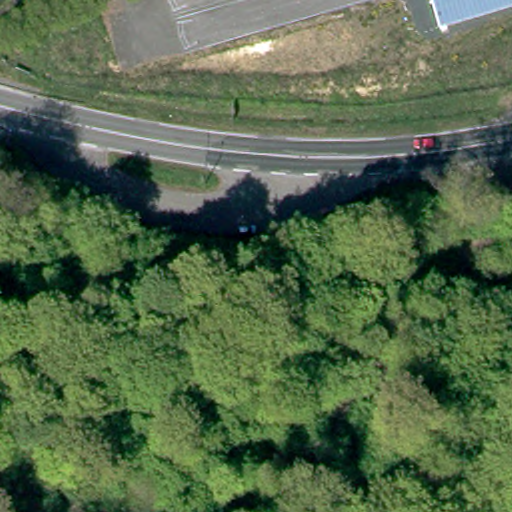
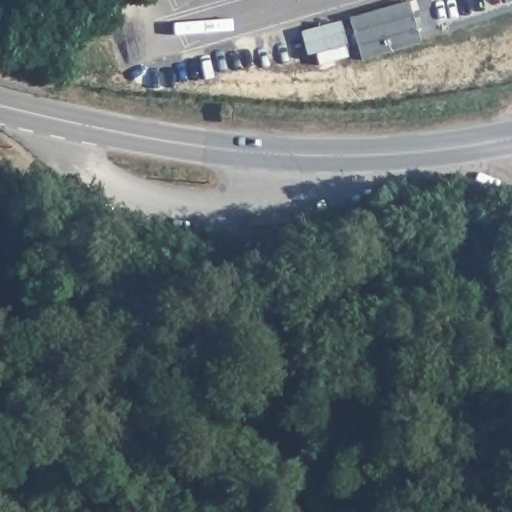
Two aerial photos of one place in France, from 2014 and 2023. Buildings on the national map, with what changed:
unchanged [(432,0),(512,0),(512,7),(439,27),(432,0)]
new [(361,61),(349,17),(409,1),(421,44),(361,61)]

